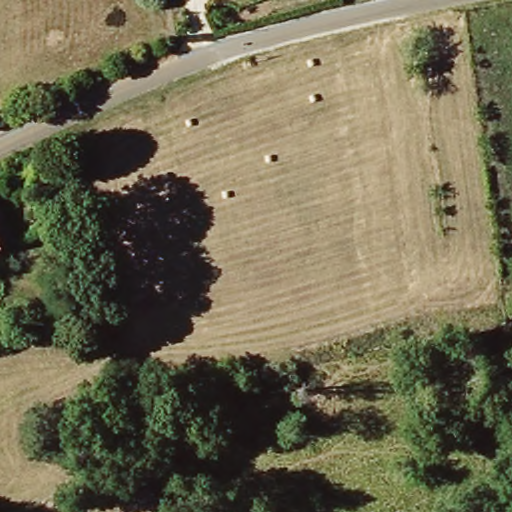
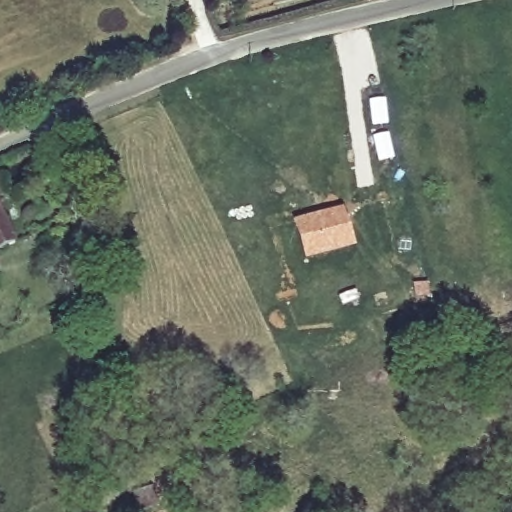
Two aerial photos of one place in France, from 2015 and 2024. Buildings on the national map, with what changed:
new [(343,207),(354,251),(302,264),(291,220),(343,207)]
unchanged [(0,246),(0,215),(3,223),(12,241),(0,246)]

